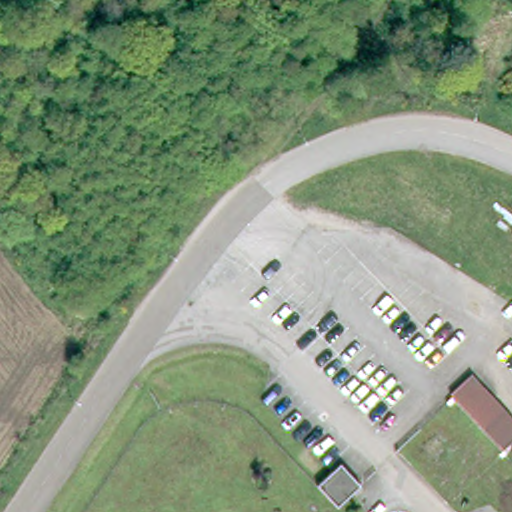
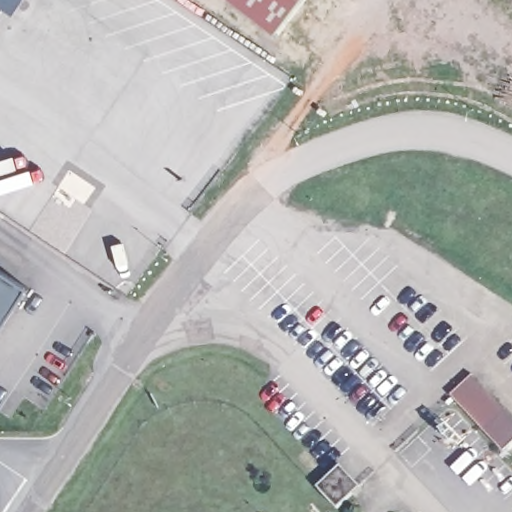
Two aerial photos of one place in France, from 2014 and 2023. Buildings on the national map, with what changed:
new [(13,17),(0,8),(0,0),(24,0),(13,17)]
new [(275,35),(229,0),(303,0),(275,35)]
new [(26,290),(0,329),(0,273),(26,290)]
unchanged [(454,392),(476,370),(512,410),(512,439),(505,446),(454,392)]
unchanged [(359,480),(334,502),(315,481),(340,460),(359,480)]

